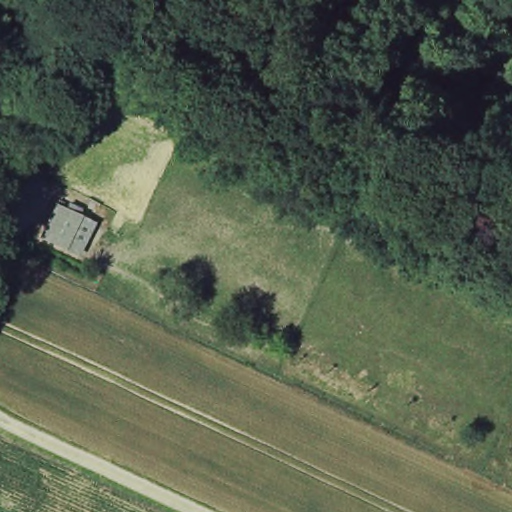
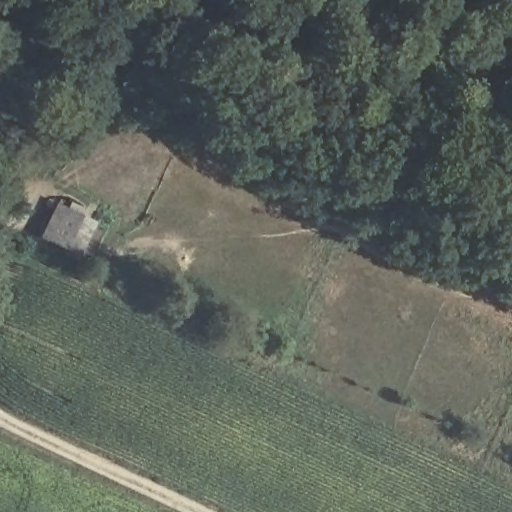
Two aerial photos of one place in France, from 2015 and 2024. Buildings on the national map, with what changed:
unchanged [(40,236),(58,202),(96,221),(79,255),(40,236)]

